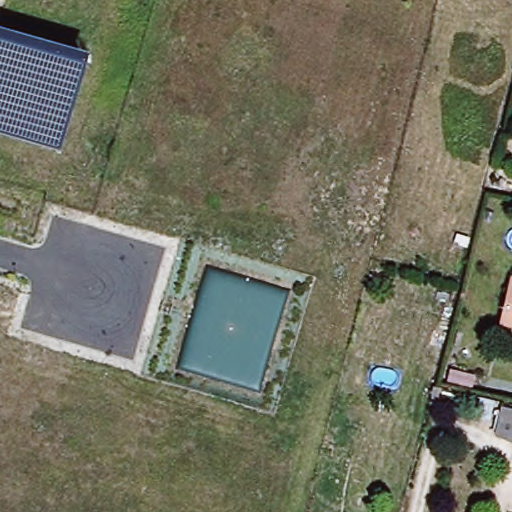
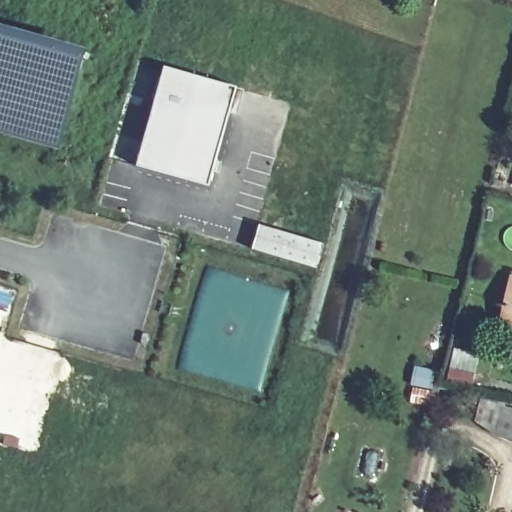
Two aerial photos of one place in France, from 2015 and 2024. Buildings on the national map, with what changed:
unchanged [(58,149),(0,132),(0,26),(88,51),(58,149)]
new [(161,70),(234,91),(204,190),(131,168),(161,70)]
new [(259,227),(323,248),(316,272),(251,252),(259,227)]
unchanged [(500,320),(508,288),(510,279),(512,279),(512,323),(500,320)]
unchanged [(453,369),(476,374),(473,389),(449,384),(453,369)]
unchanged [(511,444),(492,435),(498,408),(512,411),(512,444),(511,444)]

